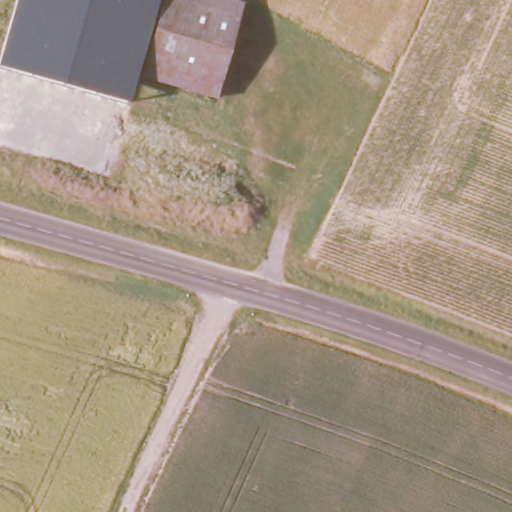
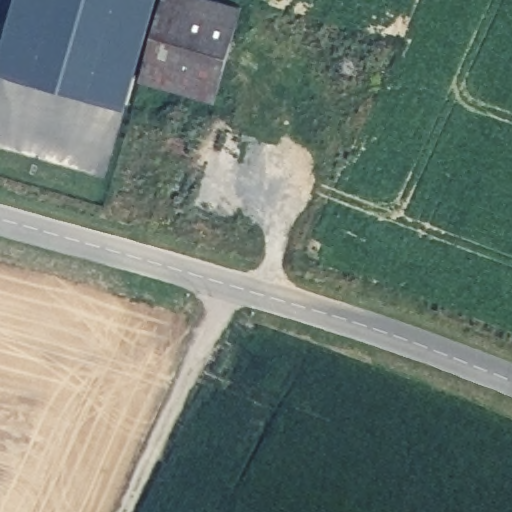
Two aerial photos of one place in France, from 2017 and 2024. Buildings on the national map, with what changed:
unchanged [(140,76),(130,103),(0,66),(0,63),(18,0),(161,0),(140,76)]
unchanged [(235,3),(212,97),(140,76),(161,0),(223,0),(235,3)]

